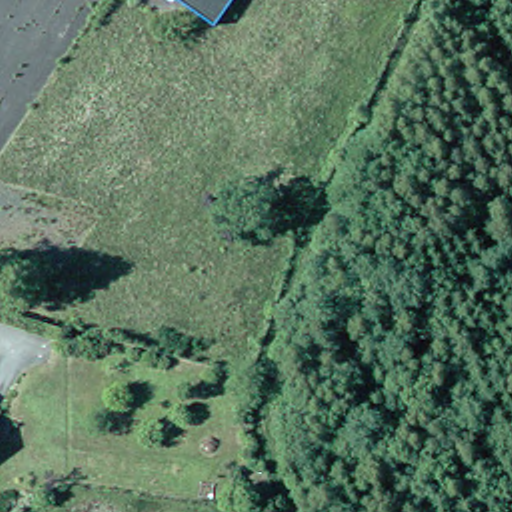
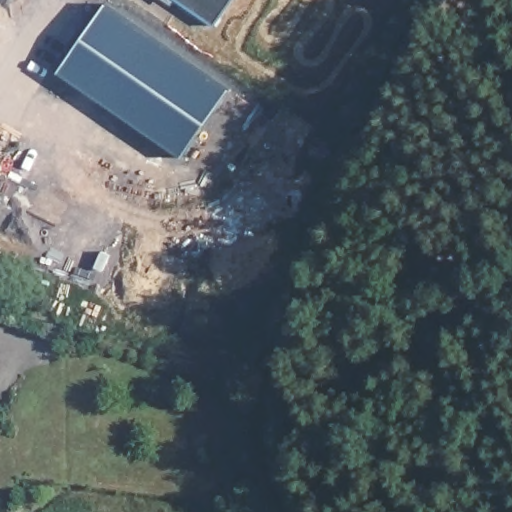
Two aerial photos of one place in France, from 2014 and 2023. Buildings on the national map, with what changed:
unchanged [(149,0),(232,0),(205,39),(149,0)]
new [(106,3),(229,89),(182,159),(57,73),(106,3)]

